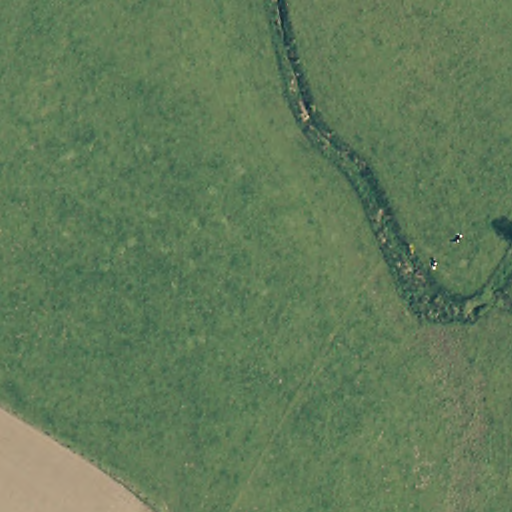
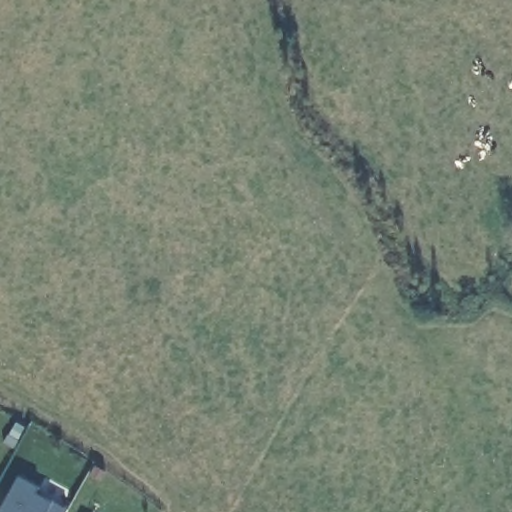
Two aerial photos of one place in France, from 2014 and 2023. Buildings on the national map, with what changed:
new [(0,512),(0,511),(19,476),(40,487),(36,493),(54,501),(67,508),(65,512),(0,512)]

